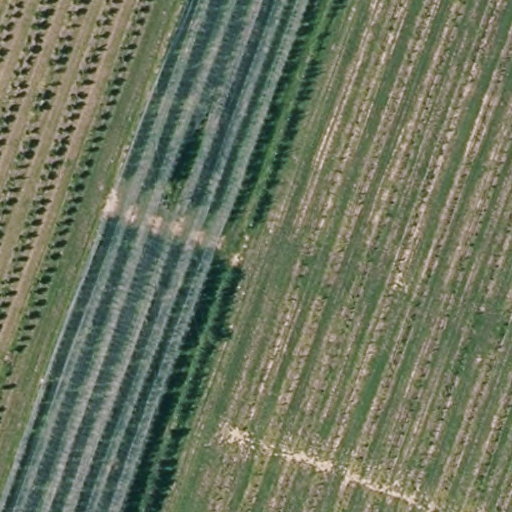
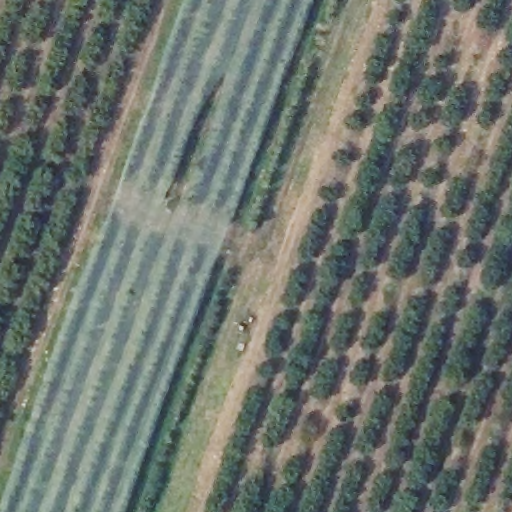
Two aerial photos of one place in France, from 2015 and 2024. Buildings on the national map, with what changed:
[]

